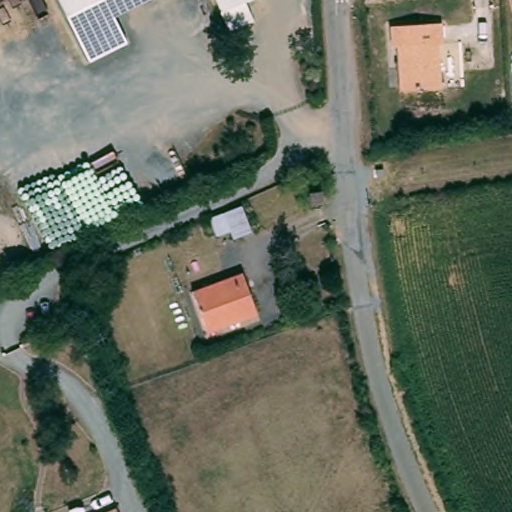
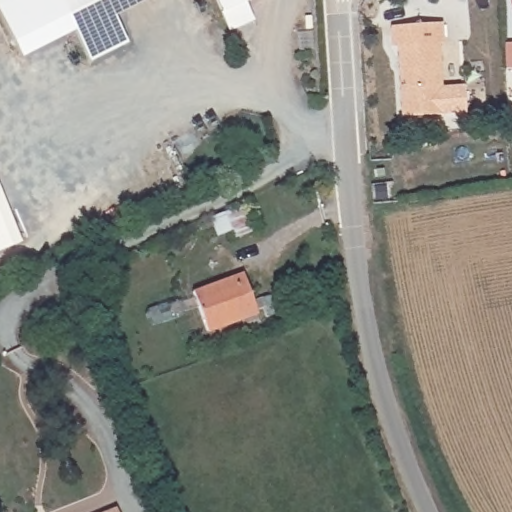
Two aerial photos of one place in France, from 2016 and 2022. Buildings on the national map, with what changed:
new [(0,16),(0,0),(59,0),(76,30),(21,57),(0,16)]
unchanged [(129,40),(91,59),(60,0),(147,0),(117,15),(129,40)]
unchanged [(230,34),(222,15),(216,0),(258,0),(245,5),(252,24),(230,34)]
unchanged [(395,56),(393,37),(447,35),(447,54),(442,54),(446,100),(403,101),(402,56),(395,56)]
new [(19,243),(0,251),(0,195),(19,243)]
unchanged [(240,207),(251,233),(235,240),(231,231),(216,237),(209,220),(240,207)]
unchanged [(246,272),(260,310),(209,330),(194,292),(246,272)]

